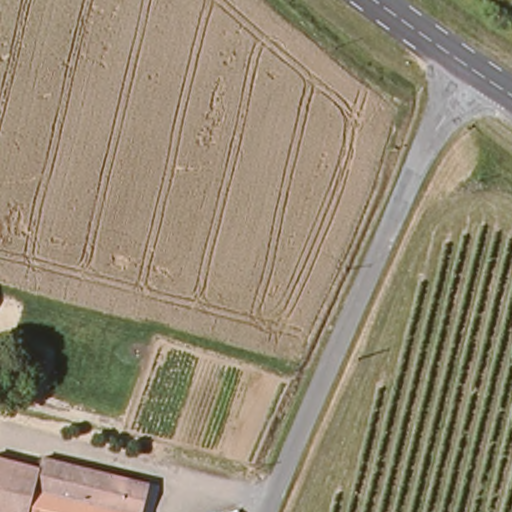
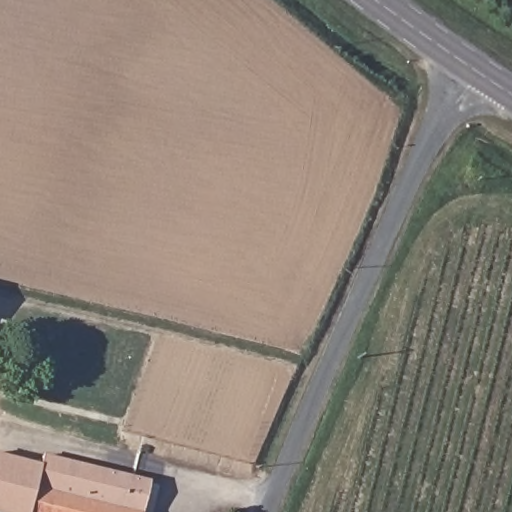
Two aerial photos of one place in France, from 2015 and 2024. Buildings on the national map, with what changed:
unchanged [(48,454),(151,484),(144,512),(0,512),(0,455),(45,467),(48,454)]

